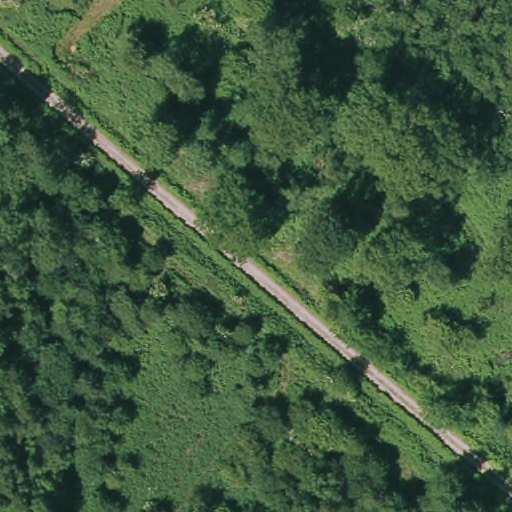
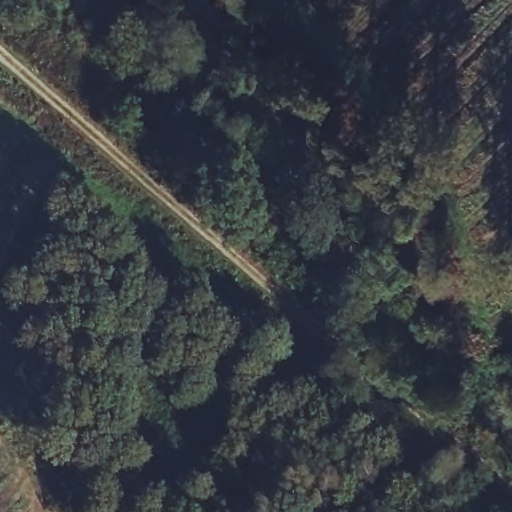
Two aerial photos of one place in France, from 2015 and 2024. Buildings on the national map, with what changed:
[]

